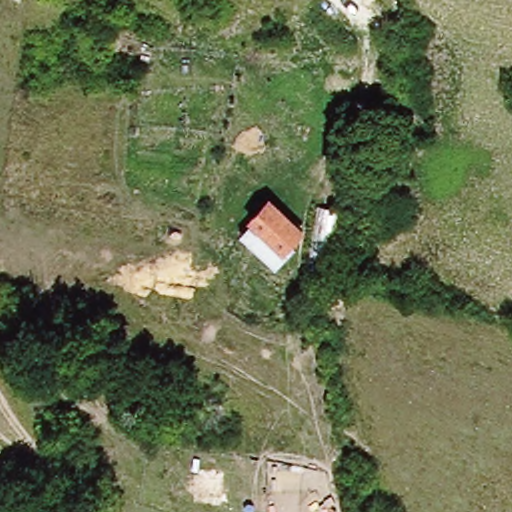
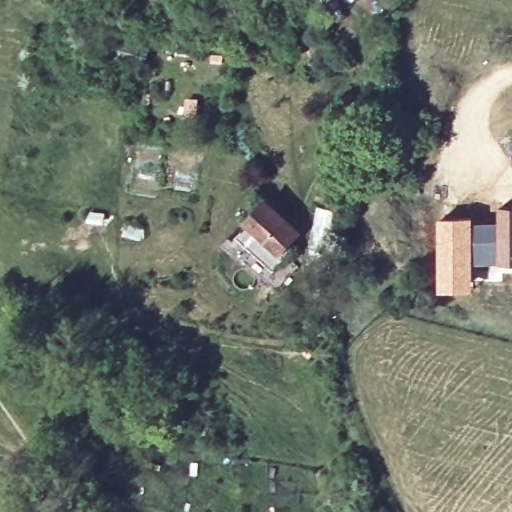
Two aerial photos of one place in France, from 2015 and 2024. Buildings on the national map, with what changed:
unchanged [(250,222),(247,220),(268,199),(304,234),(290,247),(293,251),(275,268),(240,235),(250,222)]
new [(498,222),(497,207),(512,206),(512,264),(475,265),(475,222),(498,222)]
new [(475,216),(475,222),(475,265),(475,291),(440,292),(438,217),(475,216)]

